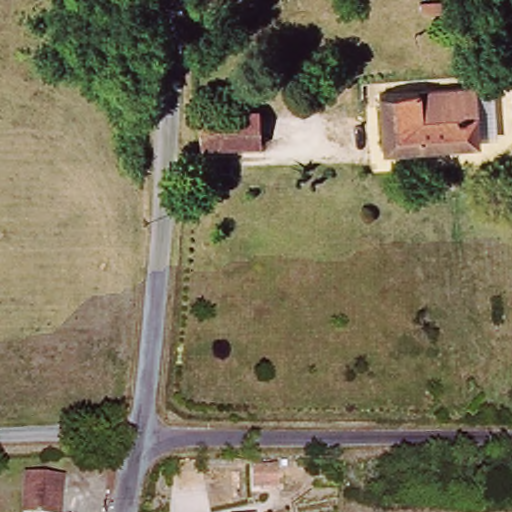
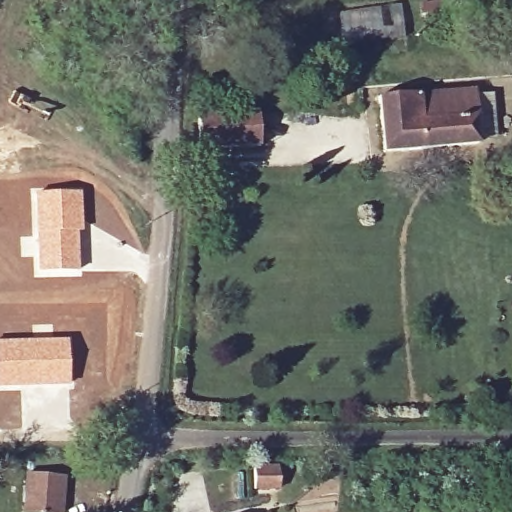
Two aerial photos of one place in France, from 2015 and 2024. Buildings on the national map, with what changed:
unchanged [(469,16),(439,19),(437,10),(469,8),(469,16)]
unchanged [(472,90),(478,147),(384,156),(379,100),(472,90)]
unchanged [(259,150),(200,152),(198,116),(256,111),(259,150)]
new [(34,192),(80,191),(83,233),(78,233),(79,271),(34,274),(34,192)]
new [(69,385),(0,387),(0,340),(68,338),(69,385)]
unchanged [(276,465),(274,485),(251,484),(251,464),(276,465)]
unchanged [(25,476),(61,479),(58,512),(23,512),(25,476)]

